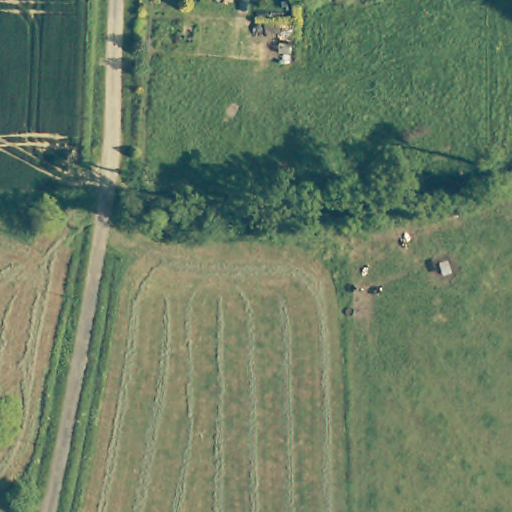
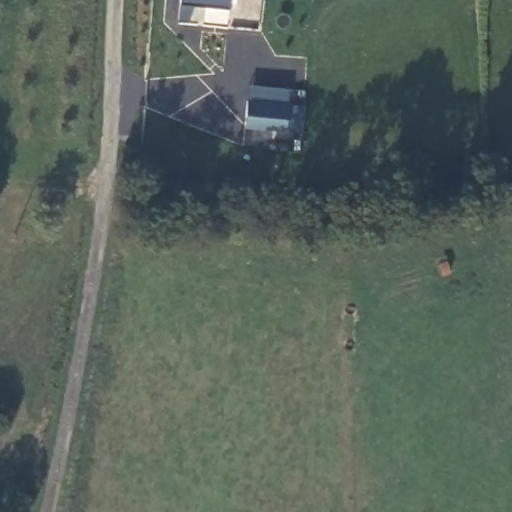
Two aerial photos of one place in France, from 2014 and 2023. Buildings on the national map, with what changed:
new [(229,8),(180,4),(180,0),(230,0),(229,8)]
new [(250,85),(288,88),(287,104),(304,106),(301,132),(246,127),(250,85)]

